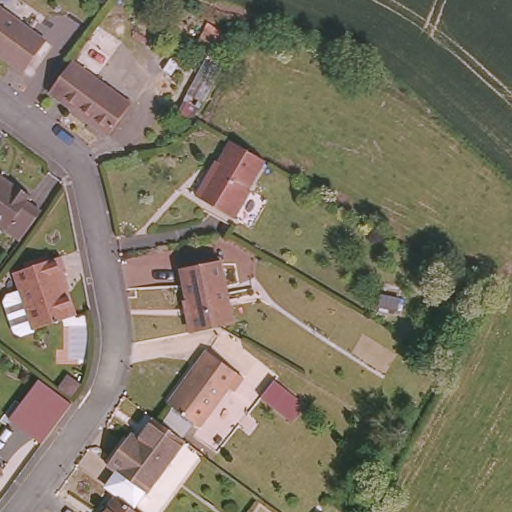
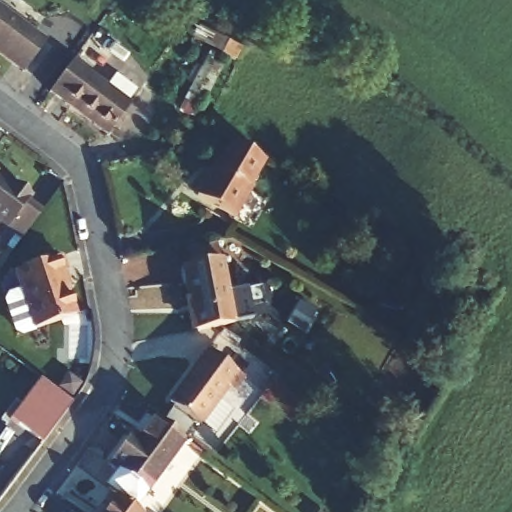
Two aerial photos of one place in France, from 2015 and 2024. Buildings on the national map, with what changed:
unchanged [(26,68),(0,49),(0,3),(48,38),(26,68)]
unchanged [(135,104),(112,134),(53,89),(75,59),(135,104)]
unchanged [(262,166),(263,166),(265,167),(246,196),(250,198),(231,224),(198,204),(211,183),(214,184),(235,150),(262,166)]
unchanged [(5,187),(8,183),(25,194),(20,200),(34,210),(14,237),(0,226),(0,183),(5,187)]
unchanged [(70,276),(66,278),(80,317),(29,335),(21,331),(11,304),(13,299),(26,295),(20,274),(63,259),(70,276)]
unchanged [(236,329),(224,330),(199,335),(186,273),(225,267),(236,329)]
unchanged [(243,382),(234,394),(230,392),(201,430),(170,407),(209,356),(243,382)]
unchanged [(277,379),(308,401),(295,418),(265,396),(277,379)]
unchanged [(71,403),(42,443),(8,420),(38,380),(71,403)]
unchanged [(106,473),(112,464),(102,458),(121,432),(125,427),(135,433),(150,412),(181,436),(141,487),(140,485),(131,498),(128,502),(100,481),(106,473)]
unchanged [(136,510),(135,512),(92,512),(109,490),(136,510)]

